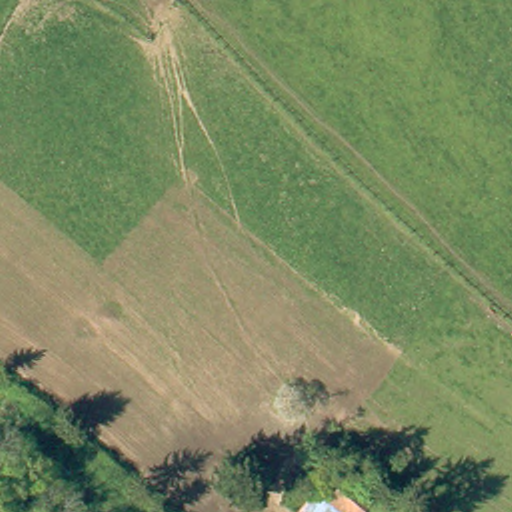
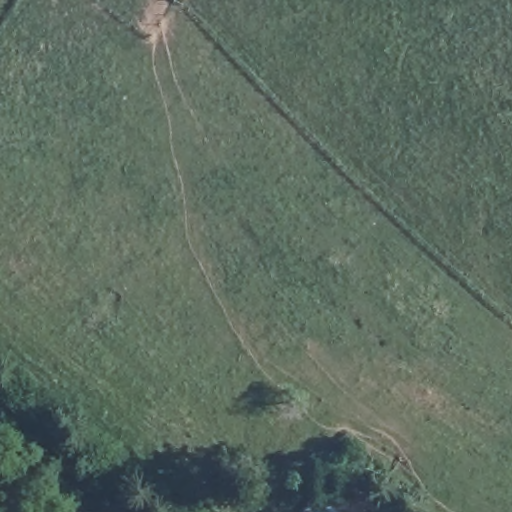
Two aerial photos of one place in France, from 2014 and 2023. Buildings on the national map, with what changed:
unchanged [(312,512),(347,471),(377,495),(360,512),(312,512)]

